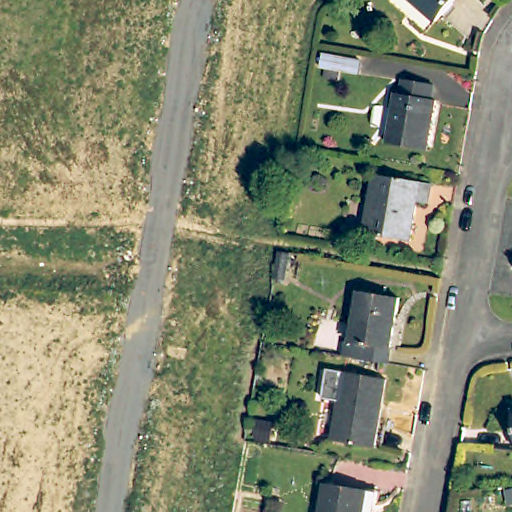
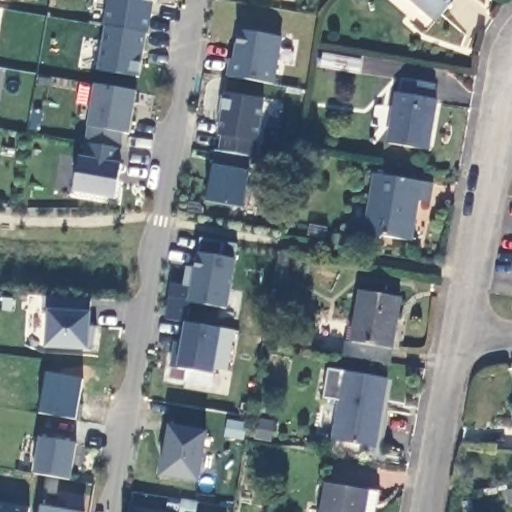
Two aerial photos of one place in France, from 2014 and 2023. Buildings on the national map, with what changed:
new [(110,0),(152,0),(147,34),(106,26),(110,0)]
unchanged [(437,22),(411,0),(455,0),(437,22)]
new [(106,26),(147,34),(140,77),(99,70),(106,26)]
new [(228,76),(230,59),(233,58),(238,30),(284,38),(275,84),(228,76)]
unchanged [(324,78),(326,68),(320,67),(323,53),(362,61),(360,74),(340,71),(338,80),(324,78)]
unchanged [(433,85),(431,98),(436,99),(428,151),(388,143),(396,93),(402,94),(404,80),(433,85)]
new [(129,134),(124,132),(123,149),(87,144),(89,127),(95,84),(135,92),(129,134)]
new [(73,192),(80,156),(87,158),(87,144),(123,149),(121,164),(116,200),(73,192)]
new [(251,171),(245,208),(207,202),(214,164),(216,150),(252,156),(251,171)]
unchanged [(432,184),(428,203),(416,202),(410,240),(365,233),(375,174),(432,184)]
new [(236,259),(228,309),(188,302),(190,288),(183,286),(187,267),(194,268),(196,252),(201,253),(201,238),(238,245),(236,259)]
unchanged [(352,342),(360,291),(400,298),(391,350),(388,351),(386,364),(342,356),(345,341),(352,342)]
new [(46,347),(48,310),(43,296),(91,300),(91,313),(90,328),(97,328),(93,350),(89,350),(46,347)]
new [(185,382),(189,370),(177,369),(185,323),(235,331),(229,372),(214,369),(214,375),(211,386),(185,382)]
unchanged [(374,448),(333,441),(340,400),(322,397),(327,370),(344,373),(386,380),(374,448)]
new [(199,482),(160,476),(168,426),(207,432),(199,482)]
new [(71,481),(34,474),(41,437),(77,444),(71,481)]
unchanged [(365,512),(321,512),(326,485),(368,492),(365,512)]
new [(39,512),(41,505),(81,512),(39,512)]

